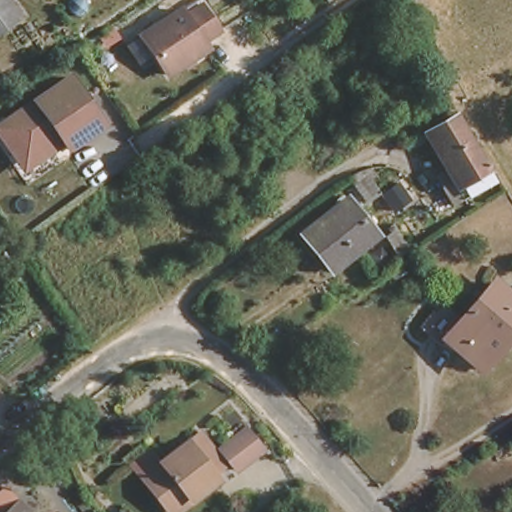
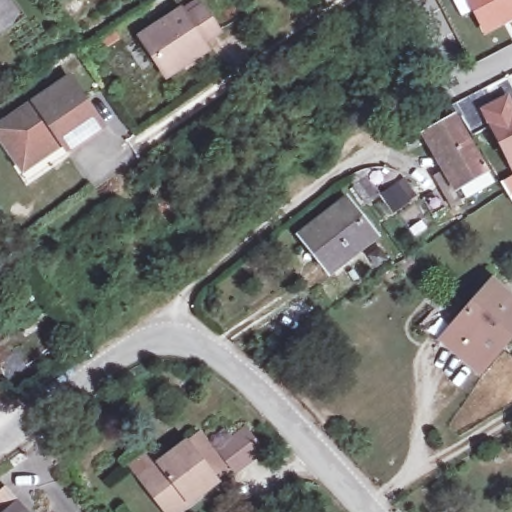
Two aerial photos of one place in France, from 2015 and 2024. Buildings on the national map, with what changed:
unchanged [(3,23),(0,23),(0,0),(5,0),(14,15),(3,23)]
unchanged [(329,0),(328,1),(327,0),(329,0)]
new [(470,0),(512,0),(512,28),(488,42),(470,0)]
unchanged [(176,13),(181,20),(198,9),(214,35),(198,45),(203,53),(164,78),(138,38),(176,13)]
unchanged [(0,145),(0,127),(1,126),(65,81),(98,128),(63,153),(58,146),(19,173),(0,145)]
new [(479,108),(509,93),(512,101),(512,170),(489,125),(479,108)]
unchanged [(441,175),(455,167),(435,131),(461,117),(498,182),(457,205),(441,175)]
unchanged [(356,190),(369,181),(381,198),(368,208),(356,190)]
unchanged [(301,238),(346,204),(373,243),(329,277),(301,238)]
unchanged [(512,298),(512,341),(483,375),(448,344),(499,286),(512,298)]
unchanged [(223,450),(249,428),(268,450),(241,472),(223,450)]
unchanged [(187,512),(172,512),(171,511),(146,480),(201,438),(226,467),(215,477),(218,481),(200,496),(203,500),(187,512)]
unchanged [(15,501),(2,512),(0,512),(0,497),(6,491),(15,501)]
unchanged [(15,501),(25,512),(2,512),(15,501)]

